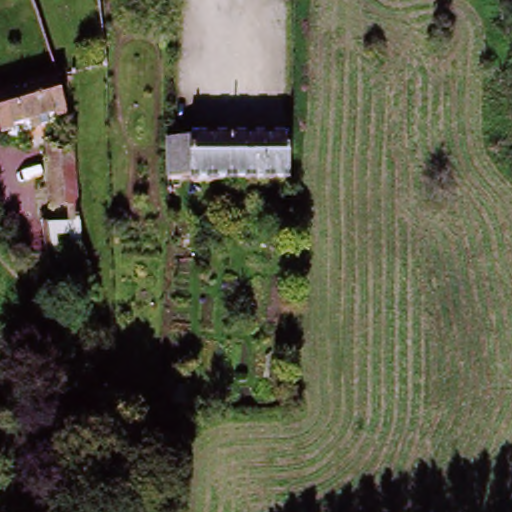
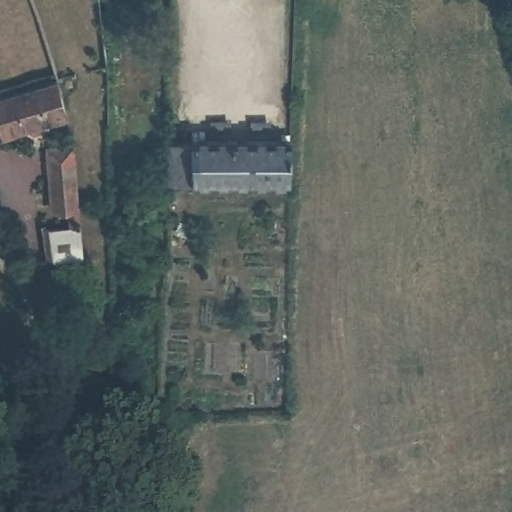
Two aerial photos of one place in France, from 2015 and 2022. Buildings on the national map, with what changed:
unchanged [(55,86),(60,114),(35,120),(37,131),(23,135),(20,125),(0,131),(0,102),(55,86)]
unchanged [(166,148),(188,148),(189,144),(287,146),(287,158),(287,160),(287,189),(286,189),(285,189),(252,188),(187,187),(165,187),(166,148)]
unchanged [(71,239),(60,239),(59,219),(47,219),(45,161),(70,158),(71,239)]

